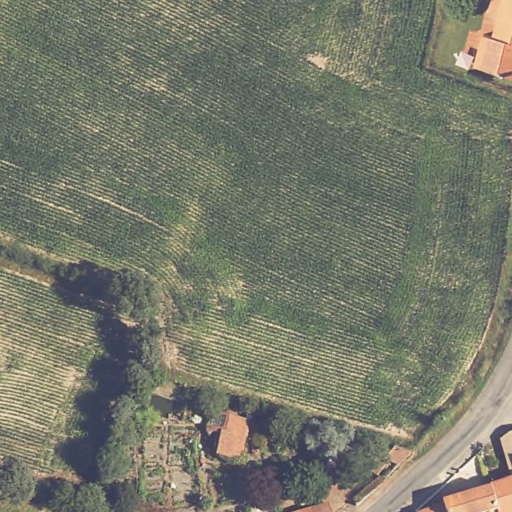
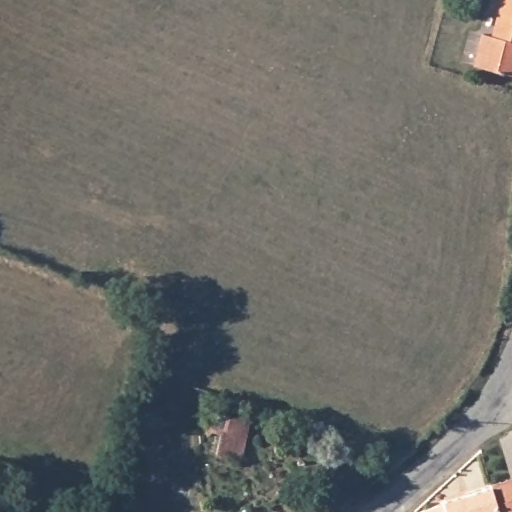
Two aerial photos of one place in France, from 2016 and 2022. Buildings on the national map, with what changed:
unchanged [(485,4),(474,0),(486,0),(485,4)]
unchanged [(489,77),(491,69),(503,22),(491,16),(496,0),(512,0),(512,85),(489,77)]
unchanged [(251,463),(227,457),(228,451),(221,448),(217,442),(224,416),(258,422),(251,463)]
unchanged [(509,446),(509,437),(512,437),(512,456),(509,446)]
unchanged [(390,454),(409,460),(397,472),(388,468),(387,477),(375,473),(378,462),(386,463),(390,454)]
unchanged [(488,490),(512,480),(512,512),(498,512),(497,512),(488,490)]
unchanged [(497,512),(498,512),(439,512),(488,490),(497,512)]
unchanged [(331,512),(306,512),(327,502),(331,512)]

